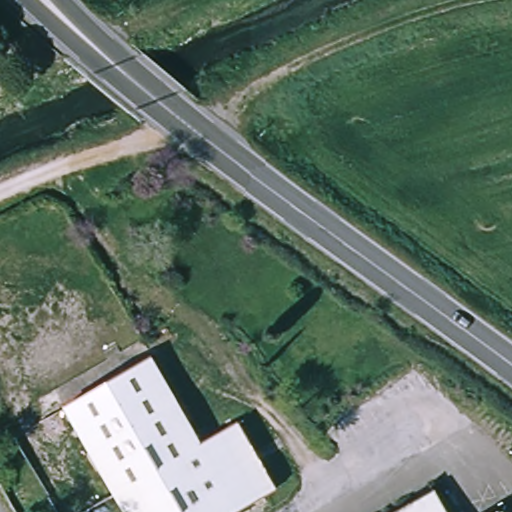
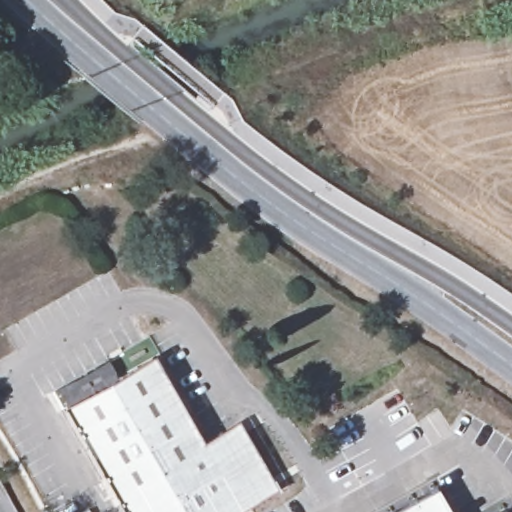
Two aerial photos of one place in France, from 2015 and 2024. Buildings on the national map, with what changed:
unchanged [(66,406),(153,356),(204,443),(239,424),(276,488),(235,512),(126,512),(66,406)]
unchanged [(430,487),(444,512),(387,512),(430,487)]
unchanged [(499,510),(500,512),(495,512),(499,510)]

